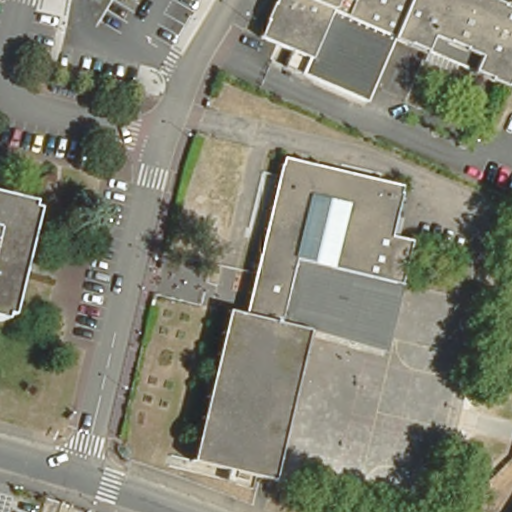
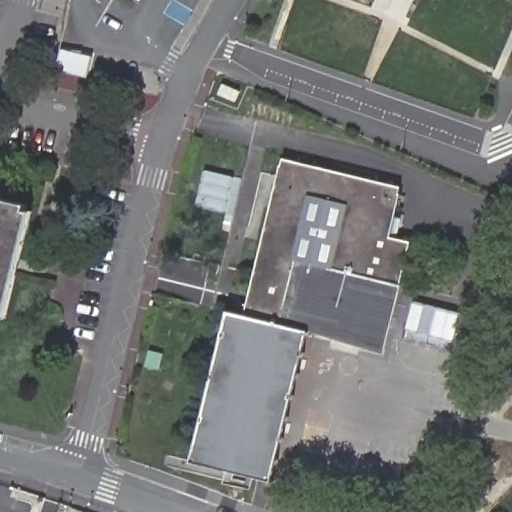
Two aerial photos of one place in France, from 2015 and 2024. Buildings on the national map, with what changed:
demolished [(482,0),(512,13),(512,85),(509,92),(477,79),(485,62),(437,41),(405,27),(397,45),(371,107),(274,67),(280,52),(266,46),(286,0),(482,0)]
unchanged [(403,184),(391,239),(413,244),(388,353),(311,337),(278,476),(276,482),(262,479),(210,467),(193,463),(193,462),(228,317),(245,322),(283,157),(403,184)]
new [(226,213),(196,207),(204,170),(234,177),(226,213)]
unchanged [(2,199),(33,206),(21,257),(14,255),(10,276),(1,315),(0,315),(0,206),(2,199)]
unchanged [(1,315),(10,276),(17,277),(6,325),(0,323),(0,315),(1,315)]
new [(406,331),(413,302),(470,316),(462,345),(406,331)]

